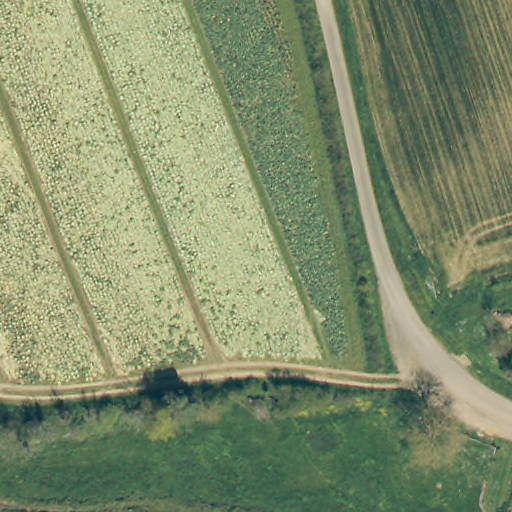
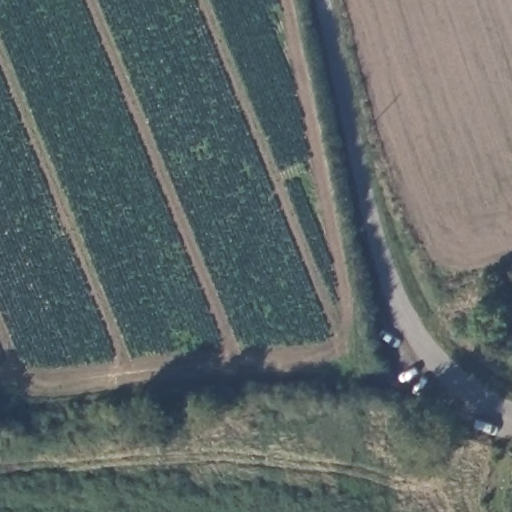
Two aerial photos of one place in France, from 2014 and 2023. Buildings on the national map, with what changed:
unchanged [(511,482),(512,478),(512,482),(511,482)]

